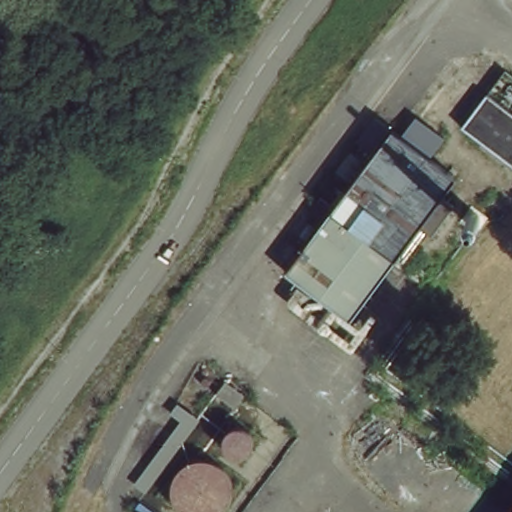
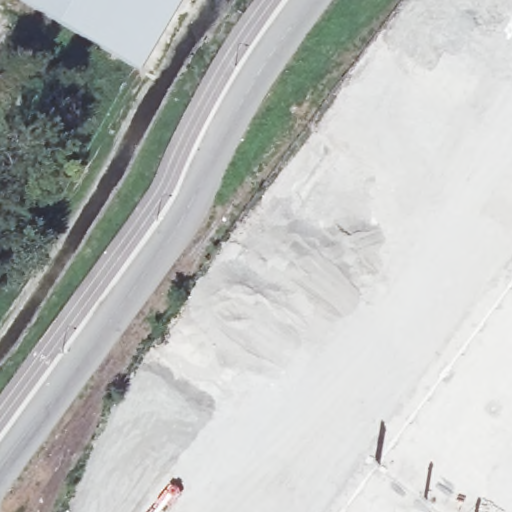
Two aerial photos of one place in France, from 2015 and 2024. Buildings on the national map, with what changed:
new [(148,78),(16,0),(195,0),(148,78)]
demolished [(485,96),(512,114),(512,163),(462,127),(485,96)]
demolished [(340,207),(371,164),(348,147),(373,113),(459,176),(356,320),(293,272),(328,224),(315,215),(327,197),(340,207)]
demolished [(238,416),(222,405),(230,393),(247,405),(238,416)]

